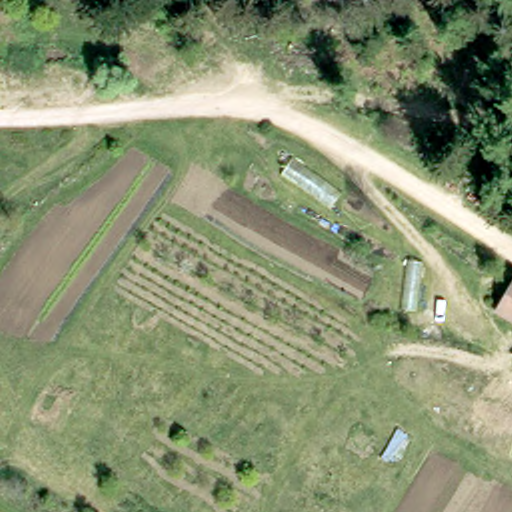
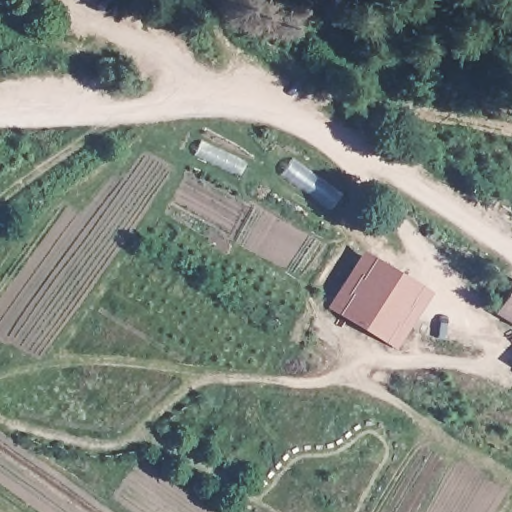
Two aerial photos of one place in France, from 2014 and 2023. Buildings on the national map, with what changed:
new [(432,291),(397,350),(327,308),(362,250),(432,291)]
unchanged [(500,312),(512,287),(512,318),(500,312)]

